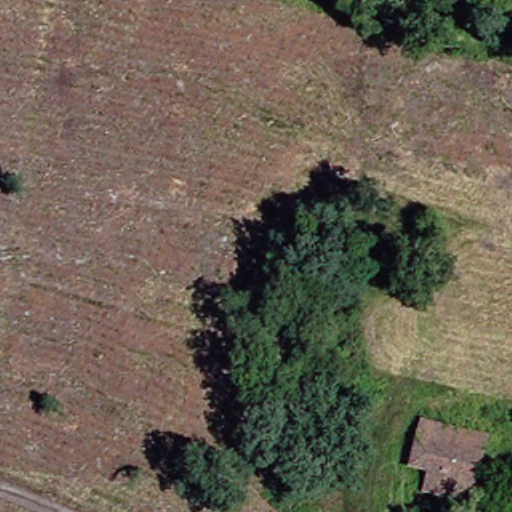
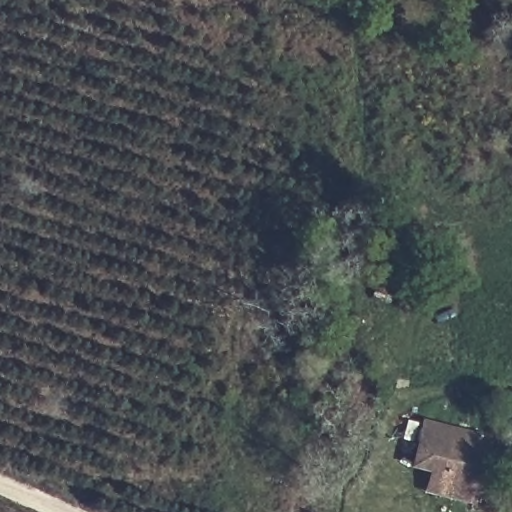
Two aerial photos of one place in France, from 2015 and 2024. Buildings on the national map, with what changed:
unchanged [(472,505),(449,500),(453,478),(418,470),(425,443),(430,420),(462,427),(483,432),(479,455),(475,482),(472,505)]

